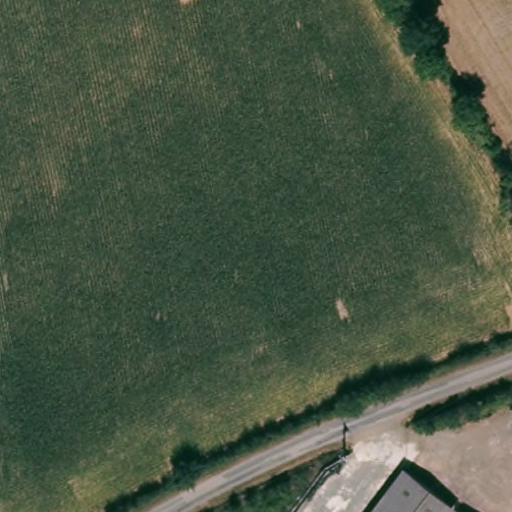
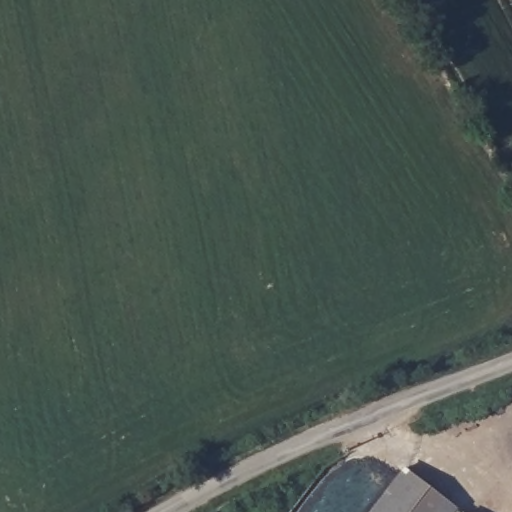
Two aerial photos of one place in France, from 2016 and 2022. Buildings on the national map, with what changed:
unchanged [(414,475),(447,496),(438,508),(436,512),(377,512),(406,470),(414,475)]
unchanged [(473,512),(470,512),(471,510),(473,512)]

